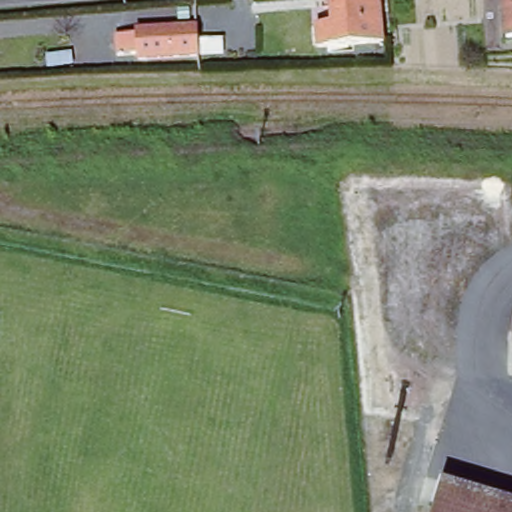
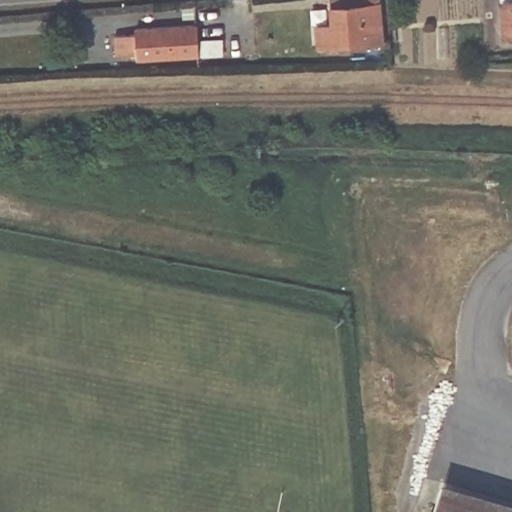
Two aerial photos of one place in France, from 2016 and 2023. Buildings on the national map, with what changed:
unchanged [(505,35),(502,0),(512,0),(512,34),(505,35)]
unchanged [(332,29),(332,6),(377,2),(380,45),(319,51),(317,30),(332,29)]
unchanged [(142,34),(142,29),(197,24),(201,52),(145,59),(144,53),(125,55),(123,36),(142,34)]
unchanged [(467,512),(443,505),(451,479),(512,498),(512,512),(467,512)]
unchanged [(467,512),(441,512),(443,505),(467,512)]

